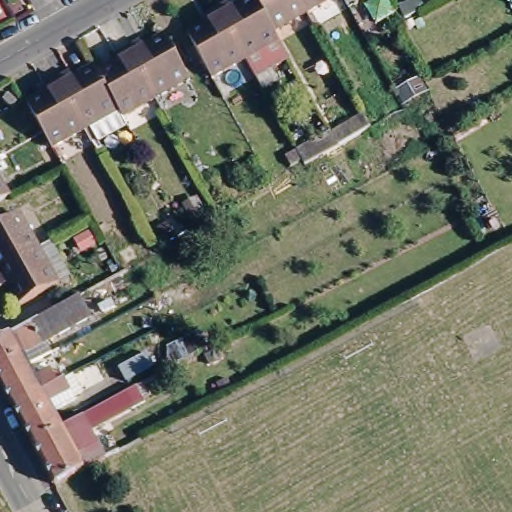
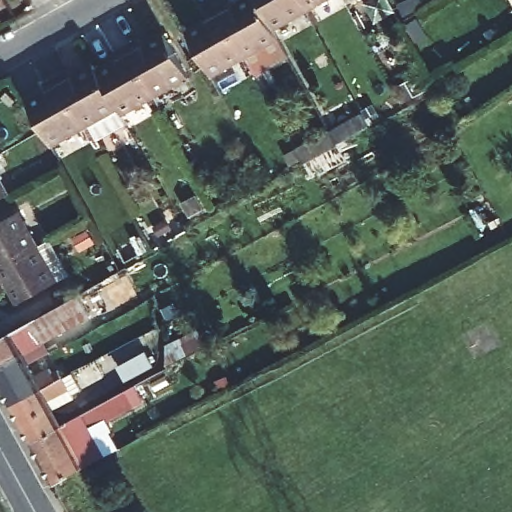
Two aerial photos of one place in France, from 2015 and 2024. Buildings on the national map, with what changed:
unchanged [(221,0),(234,0),(235,3),(240,0),(262,0),(275,24),(282,36),(248,55),(219,2),(221,0)]
unchanged [(309,6),(275,24),(262,0),(305,0),(309,6)]
unchanged [(305,0),(319,0),(309,6),(305,0)]
unchanged [(211,17),(207,8),(219,2),(248,55),(215,73),(189,28),(211,17)]
unchanged [(142,35),(147,42),(167,30),(192,74),(159,93),(130,42),(142,35)]
unchanged [(102,67),(122,56),(117,49),(130,42),(159,93),(125,111),(121,104),(102,67)]
unchanged [(71,64),(75,72),(97,60),(102,67),(121,104),(89,122),(60,71),(71,64)]
unchanged [(52,86),(47,78),(60,71),(89,122),(56,140),(47,124),(31,97),(52,86)]
unchanged [(329,135),(363,118),(369,129),(354,138),(335,148),(329,135)]
unchanged [(10,188),(0,193),(0,170),(10,188)]
unchanged [(25,206),(45,240),(0,266),(0,220),(25,206)]
unchanged [(45,240),(65,275),(26,297),(14,276),(4,282),(0,276),(0,266),(45,240)]
unchanged [(22,352),(0,363),(0,337),(17,327),(77,294),(88,314),(42,341),(49,351),(29,363),(22,352)]
unchanged [(15,404),(0,378),(0,363),(22,352),(29,363),(37,376),(50,367),(52,373),(60,370),(65,378),(15,404)]
unchanged [(69,386),(62,390),(64,392),(49,401),(63,425),(35,441),(15,404),(65,378),(69,386)]
unchanged [(85,467),(58,481),(35,441),(63,425),(100,405),(139,384),(145,393),(105,416),(105,414),(101,423),(90,430),(97,441),(115,431),(124,446),(120,448),(85,467)]

